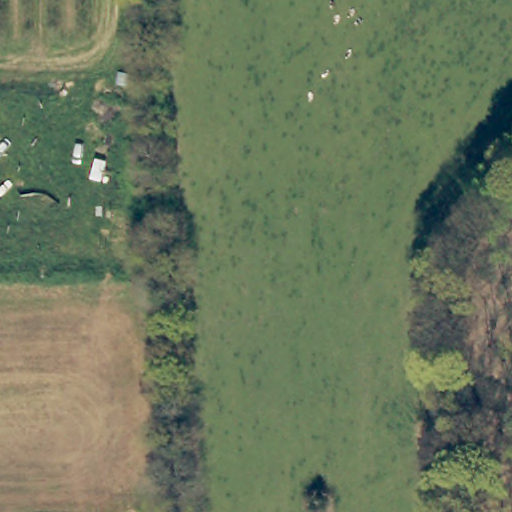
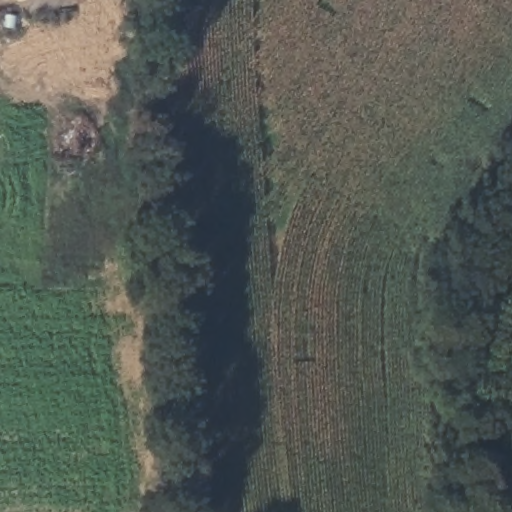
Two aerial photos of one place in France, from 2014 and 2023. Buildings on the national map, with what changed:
[]

